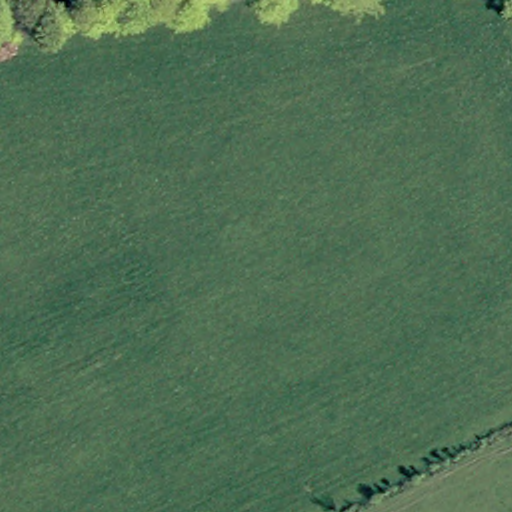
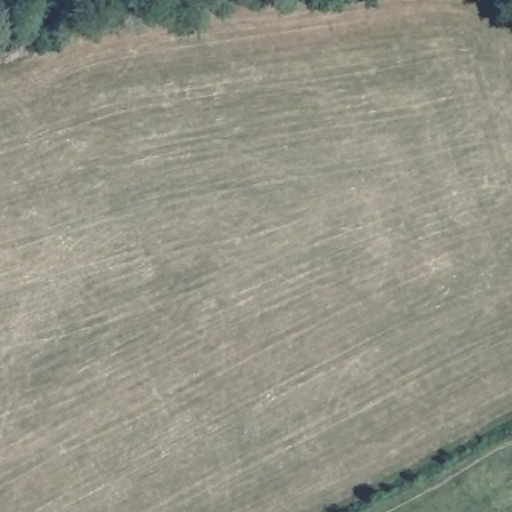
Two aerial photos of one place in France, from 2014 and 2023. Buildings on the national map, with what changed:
[]

